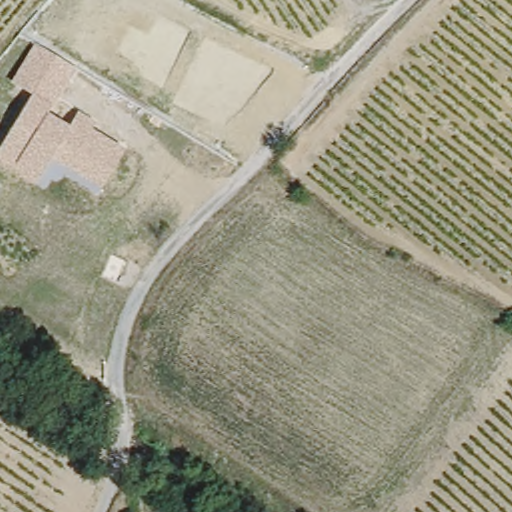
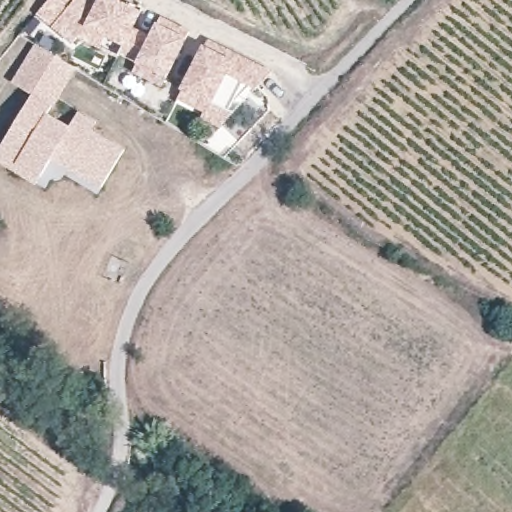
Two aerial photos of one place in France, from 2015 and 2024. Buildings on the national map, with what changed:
new [(123,44),(105,36),(100,47),(77,37),(72,43),(38,14),(49,0),(121,0),(141,10),(133,24),(123,44)]
new [(149,75),(133,66),(138,58),(121,48),(133,24),(151,34),(161,14),(190,29),(167,73),(162,82),(149,75)]
new [(237,89),(228,108),(210,98),(205,108),(179,93),(208,38),(270,70),(255,87),(243,80),(234,76),(242,80),(237,89)]
unchanged [(0,161),(0,146),(32,95),(12,84),(34,44),(76,66),(50,114),(69,126),(78,112),(97,121),(92,130),(125,148),(101,189),(52,160),(37,184),(0,161)]

